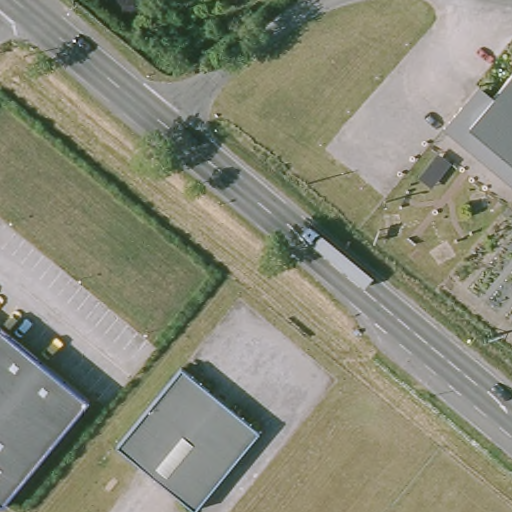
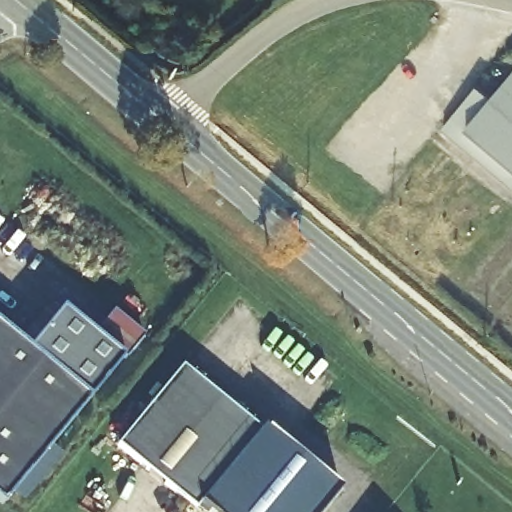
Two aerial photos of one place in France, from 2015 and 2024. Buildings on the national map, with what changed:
unchanged [(512,76),(512,185),(444,127),(479,85),(495,97),(512,76)]
new [(62,307),(93,333),(114,311),(144,337),(121,357),(90,392),(33,345),(62,307)]
unchanged [(2,498),(0,496),(0,318),(90,392),(2,498)]
unchanged [(259,428),(195,507),(116,443),(181,364),(259,428)]
new [(262,427),(340,492),(323,512),(213,512),(200,501),(259,428),(262,427)]

